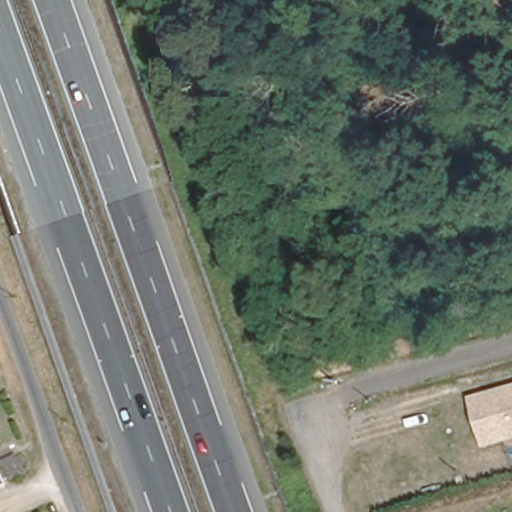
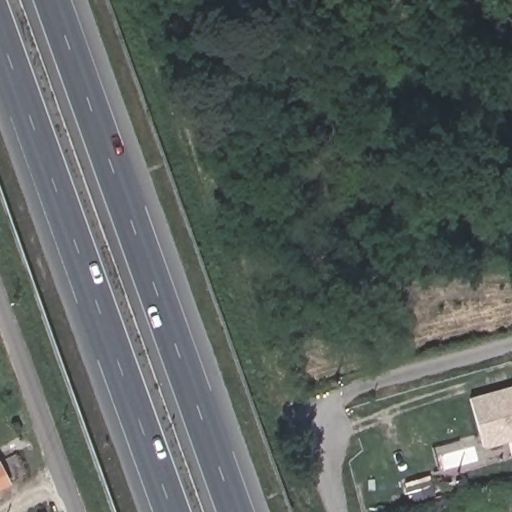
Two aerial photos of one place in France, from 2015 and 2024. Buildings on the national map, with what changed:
unchanged [(484,446),(472,396),(512,387),(512,439),(484,446)]

